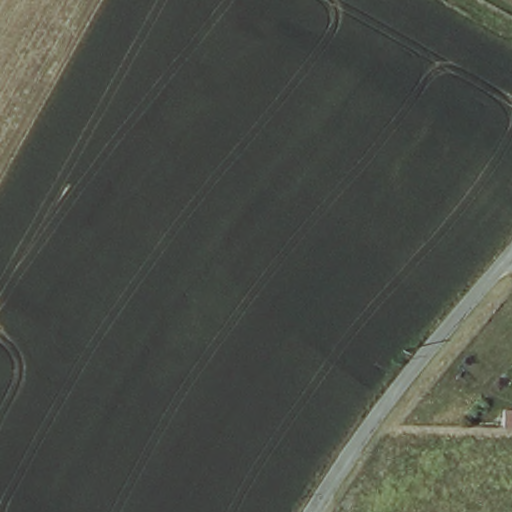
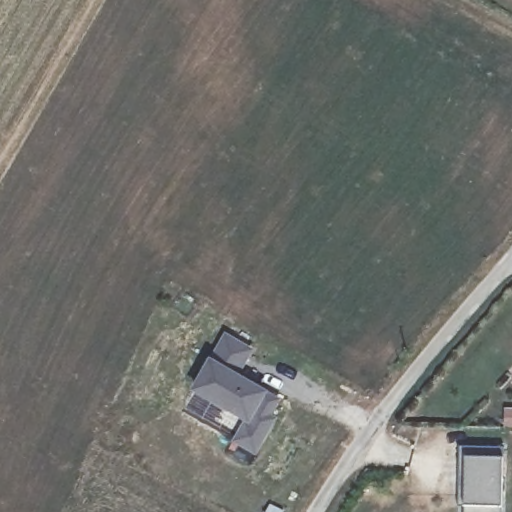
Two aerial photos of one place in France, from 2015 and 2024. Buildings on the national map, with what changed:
new [(234,442),(246,423),(193,392),(224,338),(248,352),(233,378),(275,402),(266,418),(271,421),(252,453),(234,442)]
new [(512,429),(505,428),(505,412),(512,412),(512,429)]
new [(457,510),(457,498),(458,450),(502,451),(501,512),(463,512),(463,498),(462,510),(457,510)]

